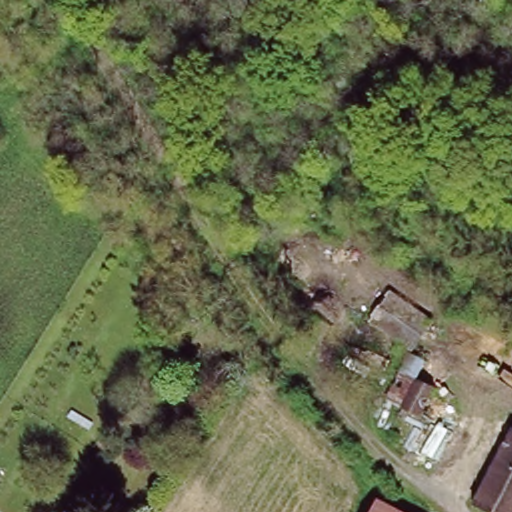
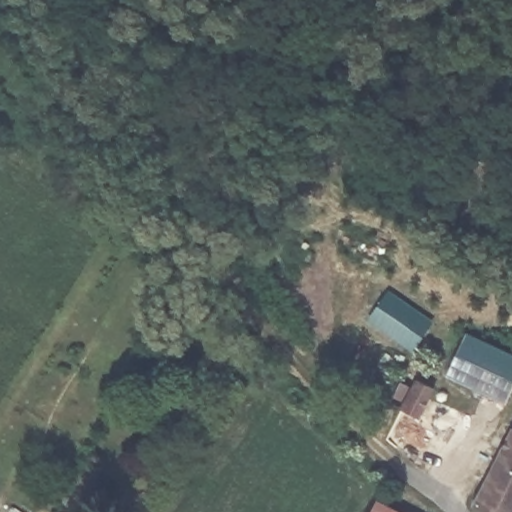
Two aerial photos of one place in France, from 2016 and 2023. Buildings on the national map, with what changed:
unchanged [(369,316),(389,287),(431,317),(411,345),(369,316)]
new [(443,372),(463,332),(512,354),(512,378),(502,400),(480,389),(443,372)]
unchanged [(407,389),(422,360),(440,368),(424,398),(407,389)]
unchanged [(473,505),(512,429),(512,512),(486,512),(480,508),(473,505)]
unchanged [(371,512),(380,496),(410,512),(371,512)]

